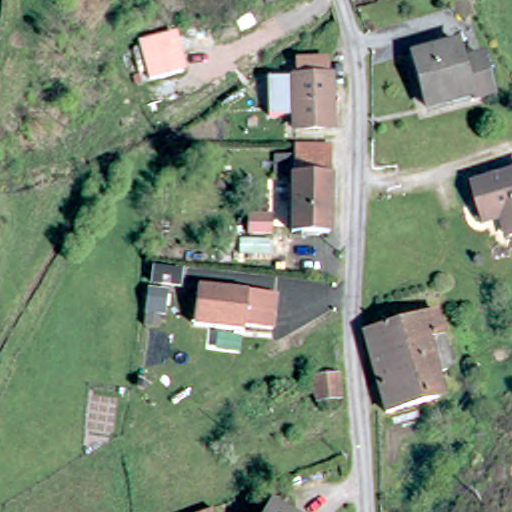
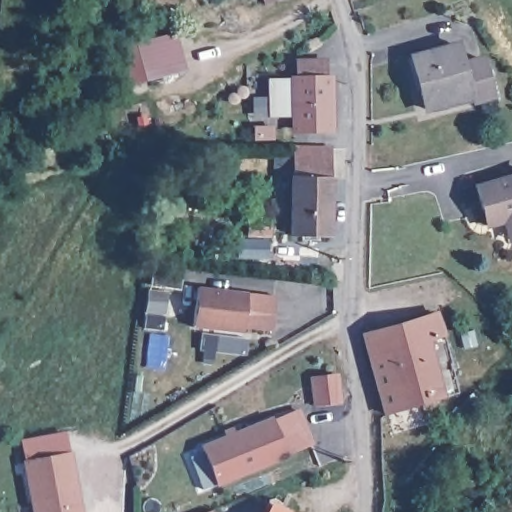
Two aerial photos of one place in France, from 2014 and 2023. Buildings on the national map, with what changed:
new [(187,70),(131,84),(122,45),(178,32),(187,70)]
unchanged [(412,52),(458,42),(462,57),(483,52),(491,90),(470,94),(424,105),(412,52)]
unchanged [(325,119),(292,120),(290,73),(323,71),(325,119)]
unchanged [(326,230),(291,229),(296,144),(331,145),(326,230)]
unchanged [(482,221),(472,182),(512,171),(512,234),(503,236),(497,217),(482,221)]
unchanged [(268,209),(268,224),(236,224),(236,208),(268,209)]
unchanged [(198,288),(245,293),(277,296),(274,330),(242,330),(195,322),(198,288)]
unchanged [(424,311),(447,390),(376,412),(356,330),(424,311)]
unchanged [(315,400),(311,374),(338,370),(342,396),(315,400)]
new [(274,420),(301,408),(315,443),(288,454),(290,458),(219,488),(201,446),(272,416),(274,420)]
new [(84,512),(33,512),(23,461),(73,452),(84,512)]
unchanged [(271,503),(287,512),(266,512),(271,503)]
new [(215,512),(205,512),(213,508),(215,512)]

